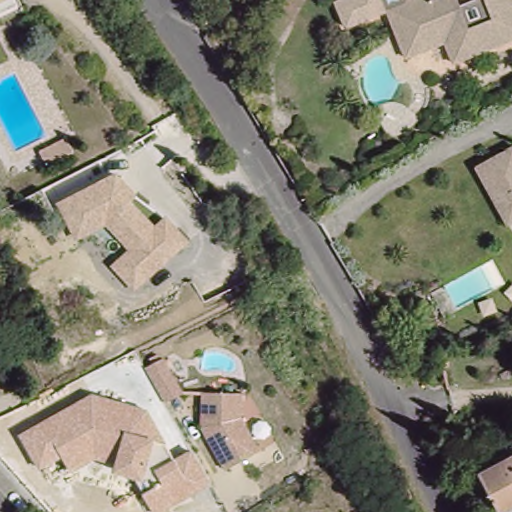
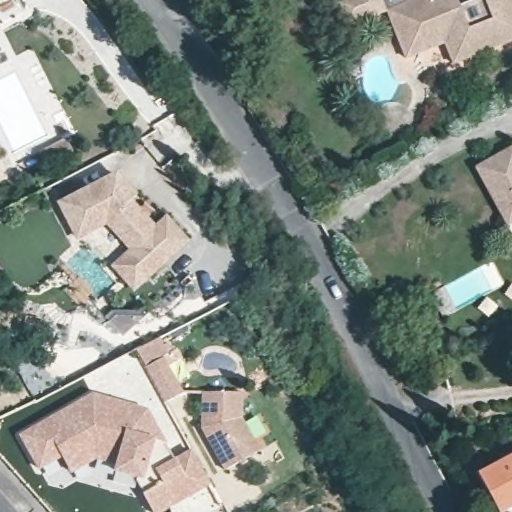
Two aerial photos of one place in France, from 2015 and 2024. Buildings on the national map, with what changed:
unchanged [(410,0),(432,0),(435,6),(450,0),(512,0),(512,46),(455,69),(446,47),(430,53),(407,63),(382,3),(389,0),(402,0),(403,3),(410,0)]
unchanged [(72,153),(47,166),(40,154),(67,141),(72,153)]
unchanged [(512,146),(512,221),(507,224),(475,167),(484,161),(512,146)]
unchanged [(58,202),(117,172),(137,194),(131,199),(155,224),(167,215),(189,242),(134,290),(112,265),(129,250),(107,225),(77,239),(58,202)]
unchanged [(156,362),(153,355),(162,351),(185,390),(165,400),(145,366),(156,362)]
unchanged [(245,392),(246,420),(262,446),(230,466),(203,420),(208,392),(245,392)]
unchanged [(20,435),(92,393),(152,412),(175,459),(192,450),(210,484),(160,512),(153,512),(144,493),(137,478),(115,471),(115,464),(95,459),(70,472),(62,457),(39,469),(20,435)]
unchanged [(510,507),(485,465),(512,451),(512,506),(510,507)]

